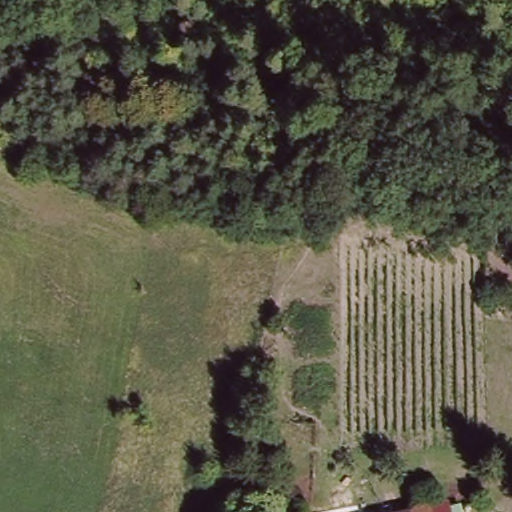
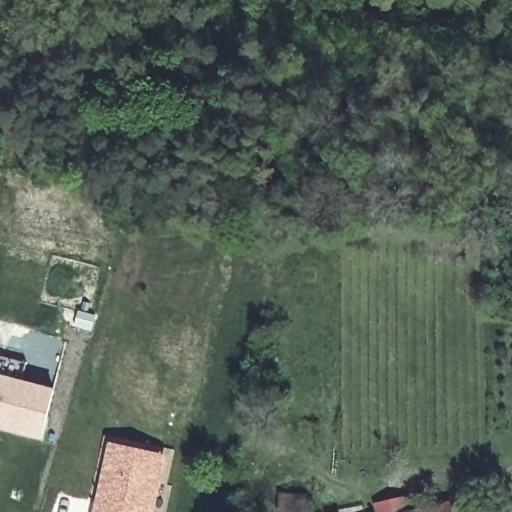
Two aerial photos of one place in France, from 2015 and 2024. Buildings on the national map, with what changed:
new [(46,438),(0,427),(0,377),(59,391),(46,438)]
new [(164,453),(160,491),(156,512),(92,512),(108,440),(164,453)]
unchanged [(458,512),(414,512),(413,503),(451,496),(458,512)]
unchanged [(299,499),(299,512),(270,512),(272,497),(299,499)]
unchanged [(414,512),(375,512),(413,503),(414,512)]

